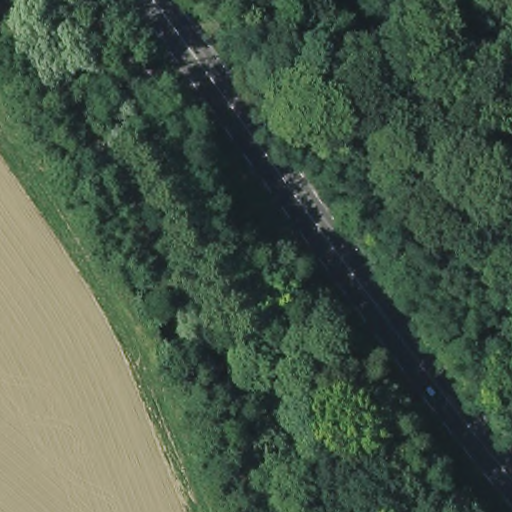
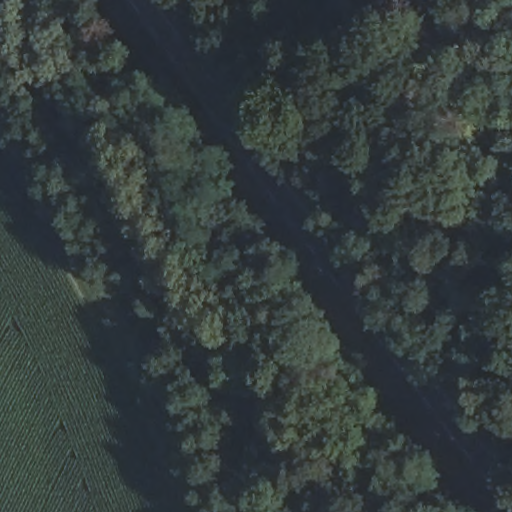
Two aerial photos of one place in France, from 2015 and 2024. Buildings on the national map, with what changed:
[]

